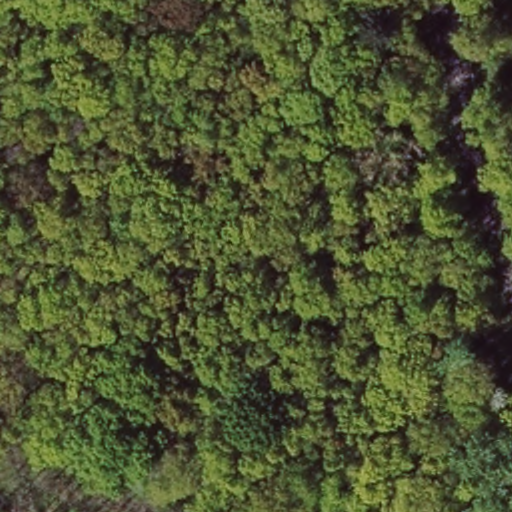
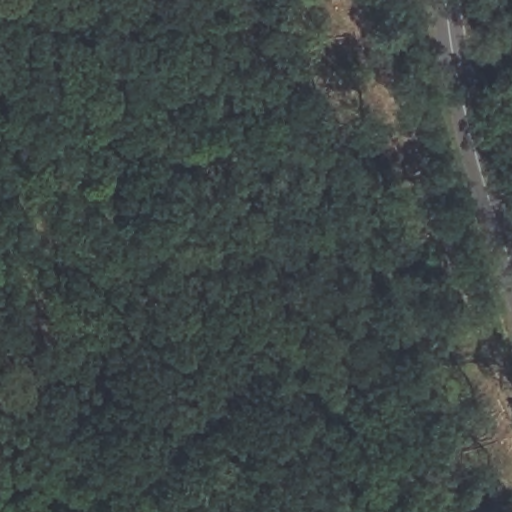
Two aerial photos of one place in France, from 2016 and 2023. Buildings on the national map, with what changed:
[]

